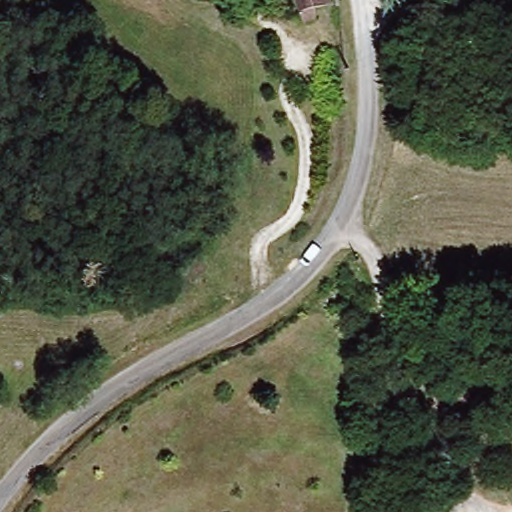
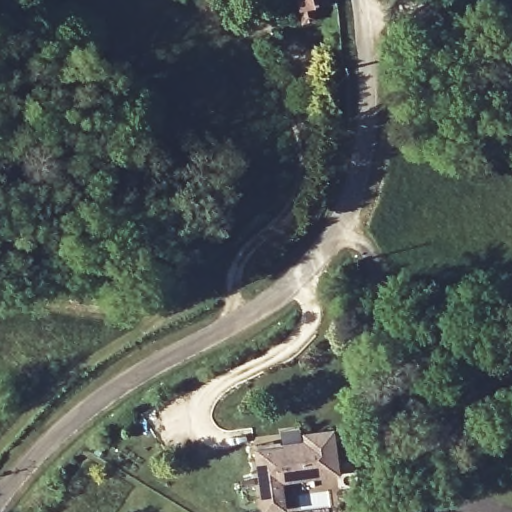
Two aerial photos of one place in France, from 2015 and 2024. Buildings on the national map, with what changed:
unchanged [(310,27),(301,29),(294,0),(324,0),(326,11),(307,16),(310,27)]
new [(309,442),(309,434),(336,432),(340,475),(282,480),(285,508),(265,511),(259,447),(309,442)]

